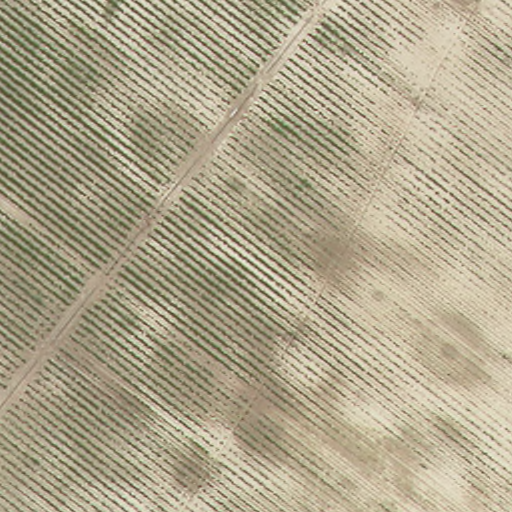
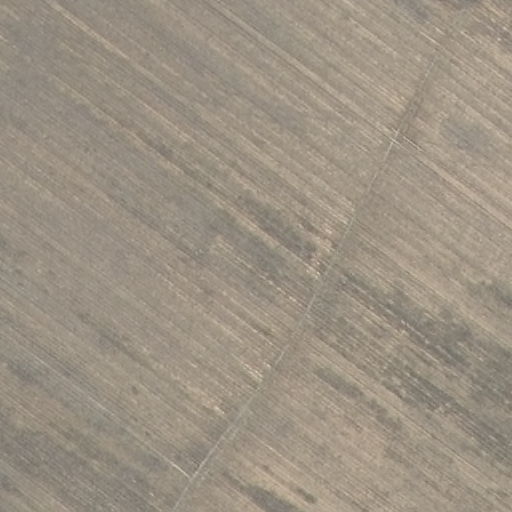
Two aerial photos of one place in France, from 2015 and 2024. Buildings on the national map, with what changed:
[]

